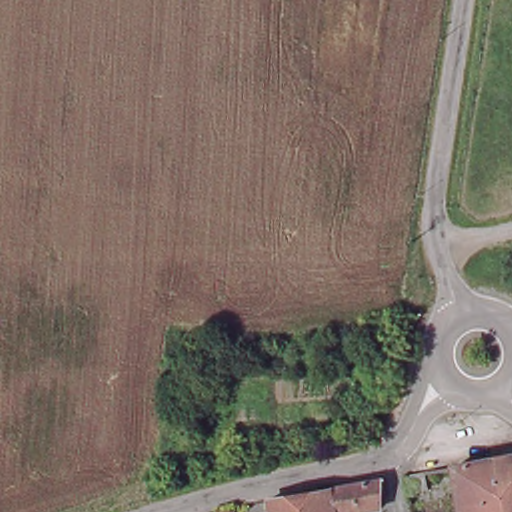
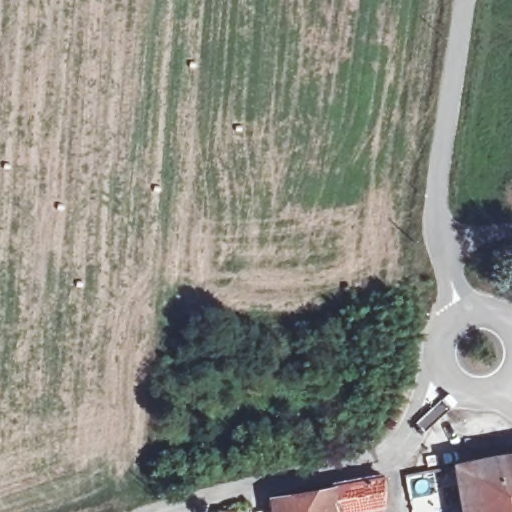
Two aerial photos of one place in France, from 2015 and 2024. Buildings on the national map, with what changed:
unchanged [(512,453),(512,510),(505,511),(497,455),(512,453)]
unchanged [(465,512),(457,462),(497,455),(505,511),(501,512),(465,512)]
unchanged [(383,480),(378,507),(354,512),(338,512),(335,489),(383,480)]
unchanged [(335,489),(338,512),(272,512),(270,501),(335,489)]
unchanged [(512,510),(512,512),(505,512),(505,511),(512,510)]
unchanged [(501,512),(505,511),(505,512),(501,512)]

